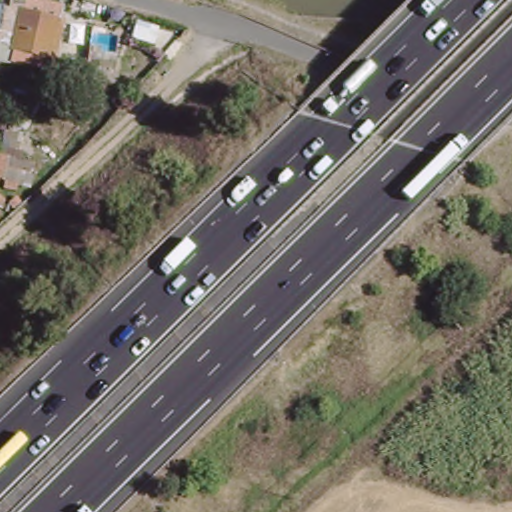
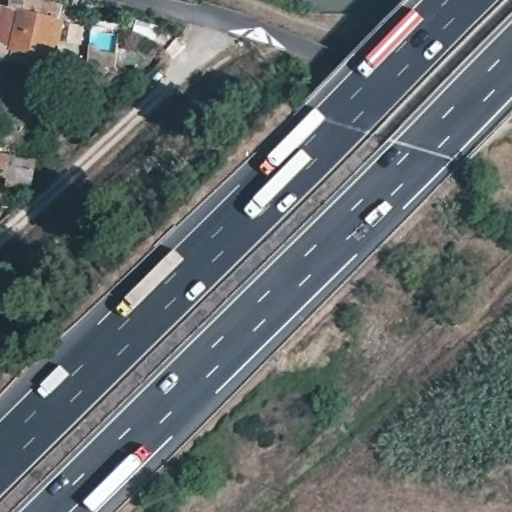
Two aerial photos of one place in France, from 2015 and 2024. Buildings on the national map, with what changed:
unchanged [(20,64),(0,60),(0,44),(12,46),(15,32),(20,9),(32,12),(73,22),(65,59),(24,49),(20,64)]
unchanged [(121,62),(93,59),(96,27),(125,30),(121,62)]

